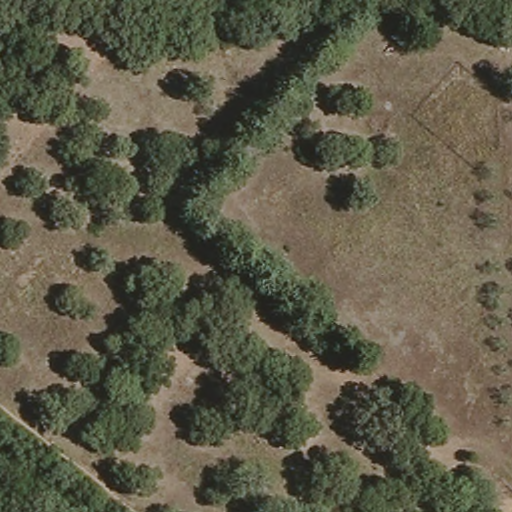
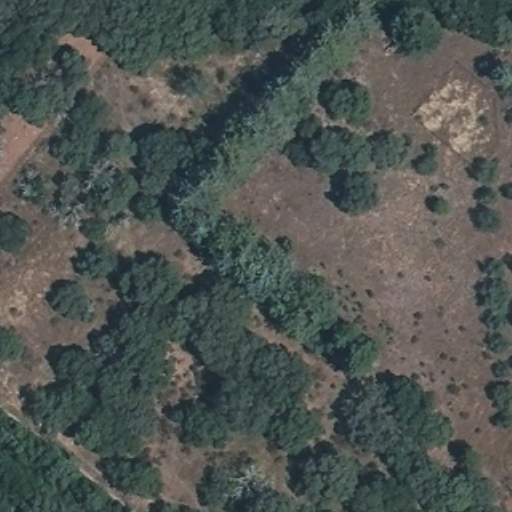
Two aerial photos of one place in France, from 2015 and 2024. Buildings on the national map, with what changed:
unchanged [(413,44),(399,54),(389,40),(400,30),(413,44)]

